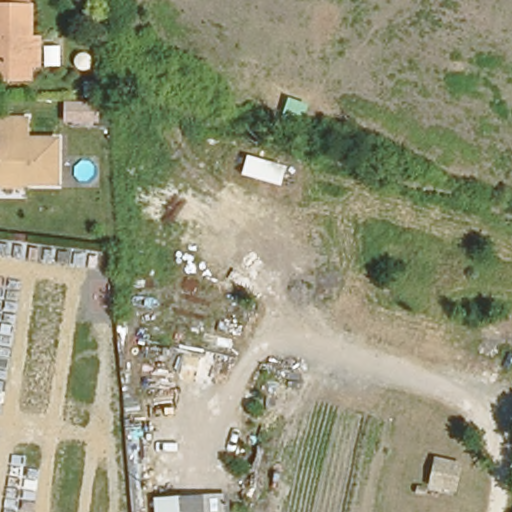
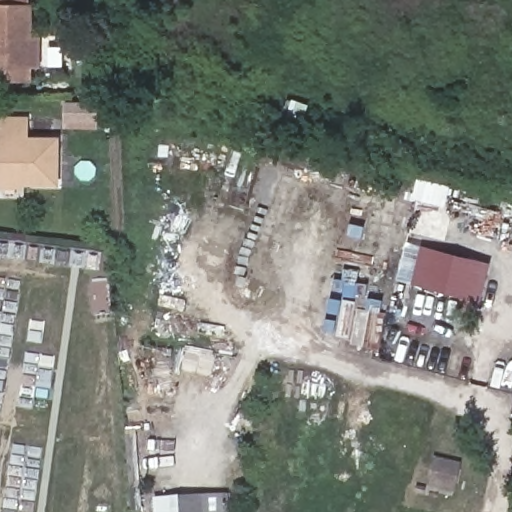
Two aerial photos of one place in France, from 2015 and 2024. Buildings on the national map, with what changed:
unchanged [(0,79),(0,0),(26,0),(25,80),(0,79)]
unchanged [(97,102),(97,121),(62,121),(62,101),(97,102)]
unchanged [(19,139),(51,139),(50,184),(0,183),(0,119),(19,119),(19,139)]
new [(409,284),(419,245),(454,254),(489,263),(479,302),(444,293),(409,284)]
unchanged [(461,461),(453,492),(425,486),(431,455),(461,461)]
unchanged [(153,512),(152,497),(199,495),(200,512),(153,512)]

